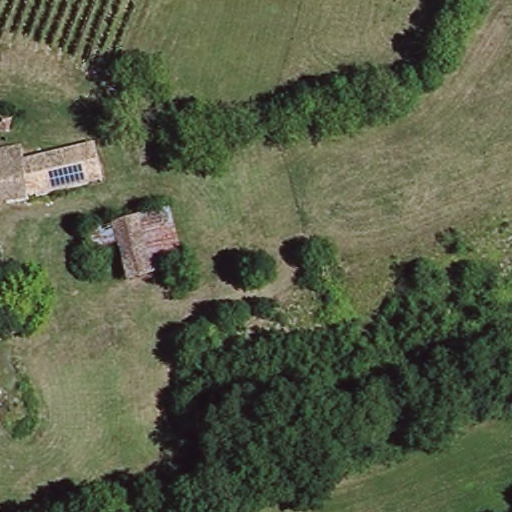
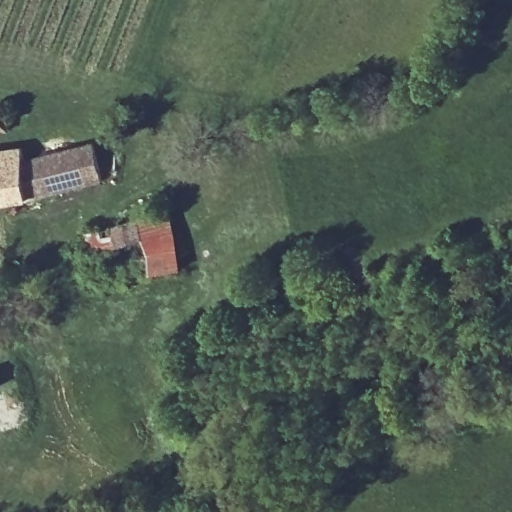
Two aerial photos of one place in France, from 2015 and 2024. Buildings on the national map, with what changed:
unchanged [(32,165),(97,153),(102,177),(104,187),(73,193),(63,196),(62,197),(0,208),(0,158),(29,153),(32,165)]
unchanged [(175,209),(188,266),(105,288),(88,230),(175,209)]

